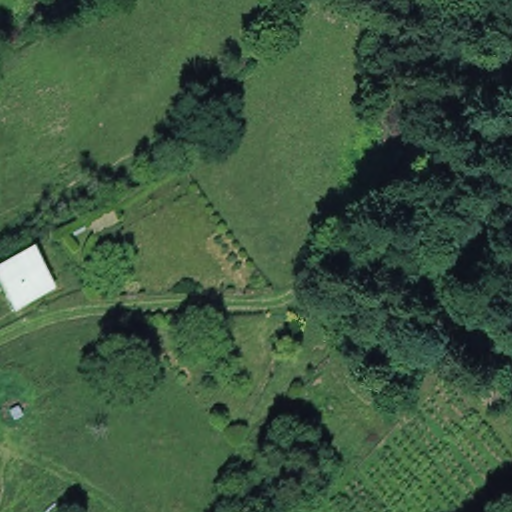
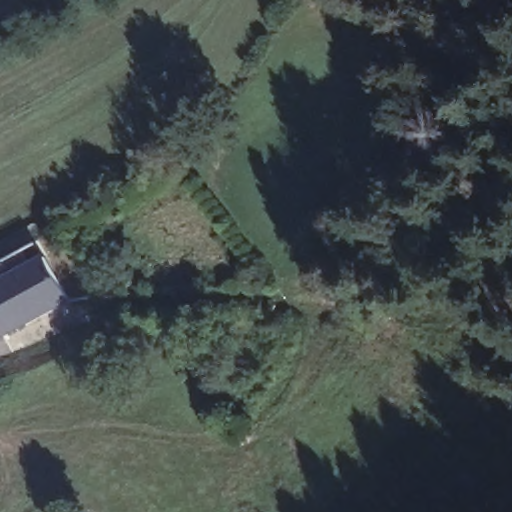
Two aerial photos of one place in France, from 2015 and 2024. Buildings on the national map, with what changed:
unchanged [(2,273),(39,251),(57,283),(24,301),(19,291),(14,294),(2,273)]

